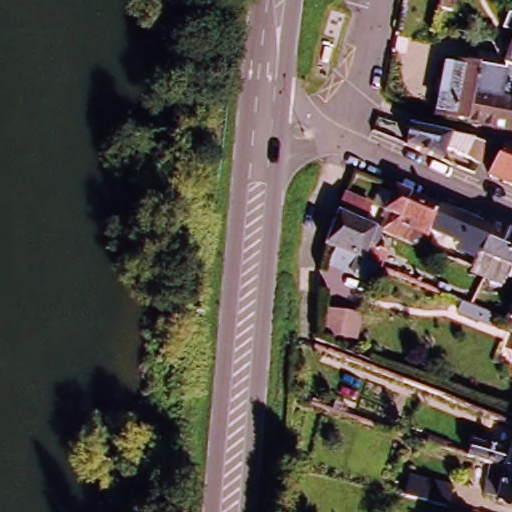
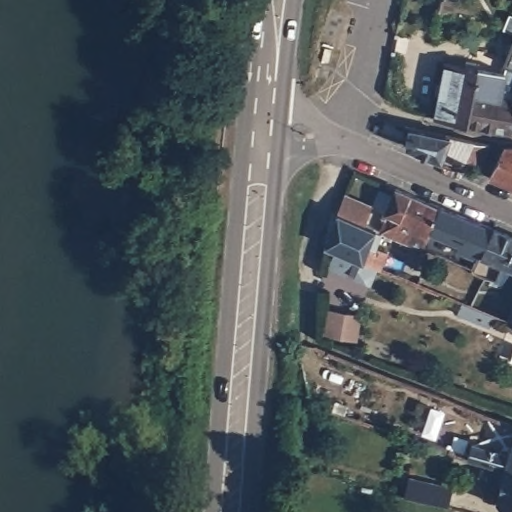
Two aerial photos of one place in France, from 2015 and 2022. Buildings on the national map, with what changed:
unchanged [(445,64),(500,66),(512,42),(512,126),(469,121),(437,110),(445,64)]
unchanged [(496,149),(483,173),(442,155),(437,163),(404,147),(412,128),(496,149)]
unchanged [(482,175),(483,173),(496,149),(499,141),(512,144),(512,187),(482,175)]
unchanged [(431,197),(412,239),(382,226),(391,205),(385,203),(395,181),(431,197)]
unchanged [(484,220),(471,245),(462,260),(412,239),(431,197),(484,220)]
unchanged [(338,211),(377,227),(371,242),(386,249),(377,266),(325,244),(338,211)]
unchanged [(505,260),(501,259),(491,255),(481,273),(462,264),(462,260),(471,245),(484,220),(512,233),(512,264),(505,260)]
unchanged [(499,313),(512,290),(512,319),(499,313)]
unchanged [(497,497),(486,492),(492,470),(447,456),(421,445),(427,426),(507,450),(512,432),(512,509),(496,503),(497,497)]
unchanged [(409,478),(449,491),(442,506),(404,496),(409,478)]

